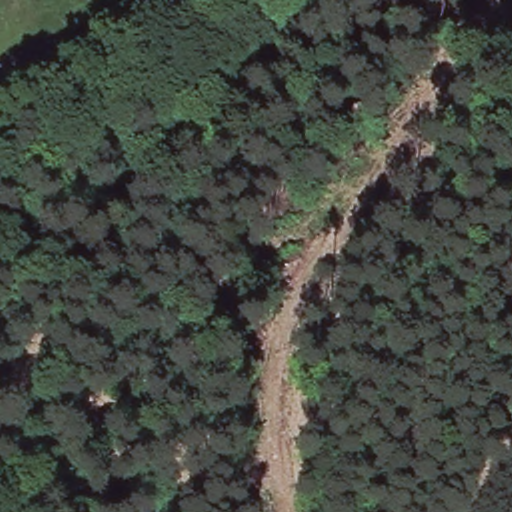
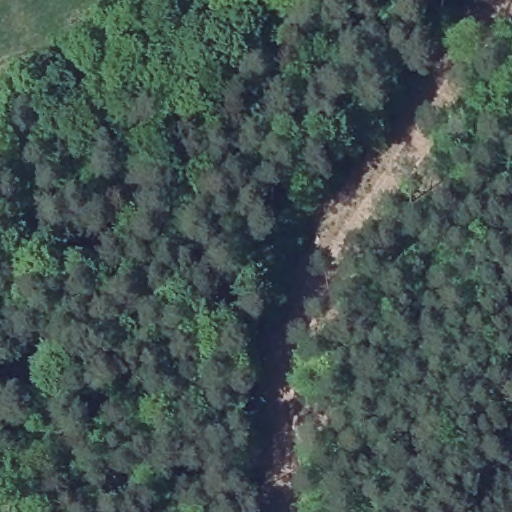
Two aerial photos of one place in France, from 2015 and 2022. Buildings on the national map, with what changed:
[]

